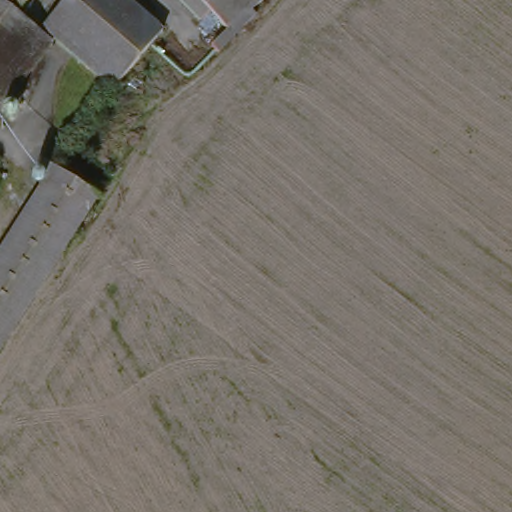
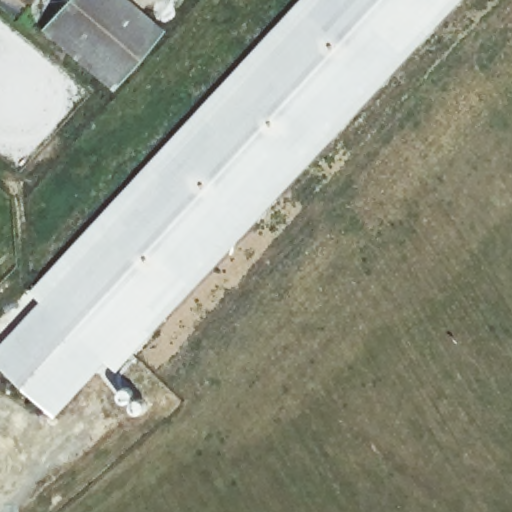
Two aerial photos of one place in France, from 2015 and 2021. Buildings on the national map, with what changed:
unchanged [(0,0),(31,0),(18,17),(0,4),(0,0)]
new [(0,346),(41,303),(28,292),(300,0),(461,0),(116,373),(106,363),(54,419),(0,366),(0,346)]
unchanged [(127,0),(159,33),(112,83),(46,17),(63,0),(127,0)]
demolished [(256,0),(226,29),(198,0),(256,0)]
demolished [(0,357),(0,234),(42,161),(95,196),(0,357)]

